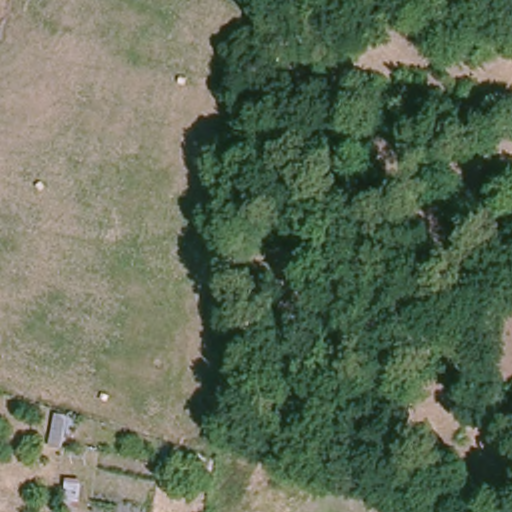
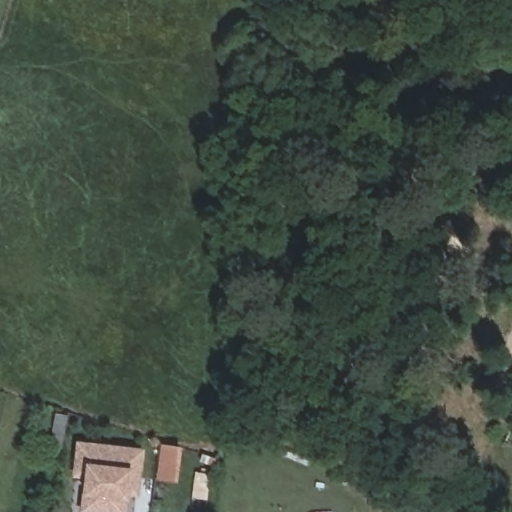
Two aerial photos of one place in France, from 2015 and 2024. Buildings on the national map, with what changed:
unchanged [(50,447),(56,413),(69,415),(62,449),(50,447)]
new [(130,495),(129,512),(97,512),(79,510),(82,494),(84,475),(74,475),(77,440),(146,447),(140,495),(130,495)]

